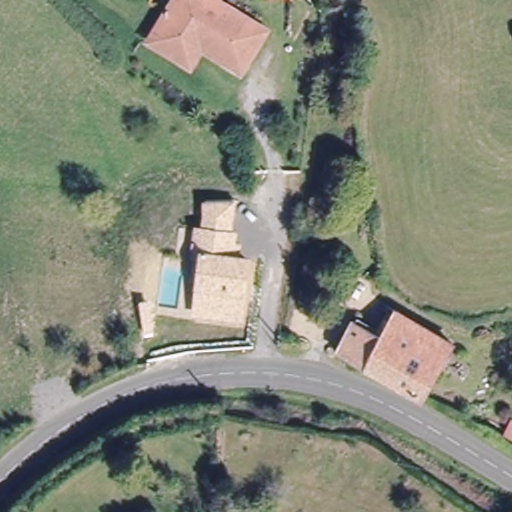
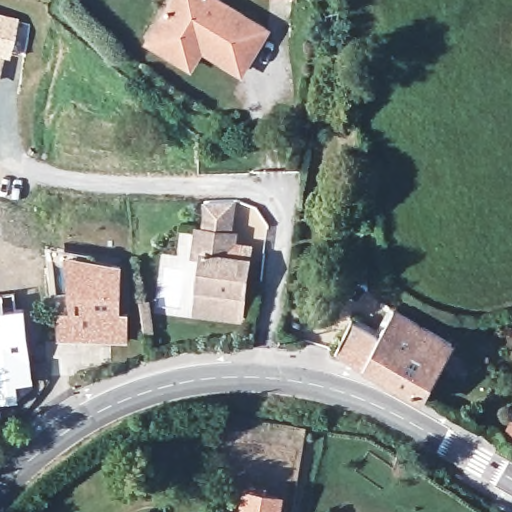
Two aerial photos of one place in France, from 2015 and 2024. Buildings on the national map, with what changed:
unchanged [(153,45),(184,0),(207,0),(263,37),(240,71),(205,48),(191,69),(177,61),(153,45)]
new [(17,16),(9,54),(0,77),(0,12),(17,16)]
unchanged [(237,200),(233,230),(239,231),(237,244),(240,245),(237,256),(253,259),(246,298),(242,319),(191,312),(198,254),(190,252),(194,223),(202,226),(203,216),(205,199),(237,200)]
new [(94,253),(93,258),(123,263),(122,312),(130,313),(128,342),(58,338),(58,322),(51,305),(47,246),(94,253)]
new [(6,307),(27,304),(34,382),(18,384),(19,400),(0,403),(0,292),(4,291),(6,307)]
unchanged [(413,399),(336,351),(354,320),(379,333),(394,308),(449,341),(414,400),(413,399)]
unchanged [(512,440),(499,433),(505,421),(512,425),(512,440)]
new [(286,493),(283,512),(237,512),(240,485),(286,493)]

